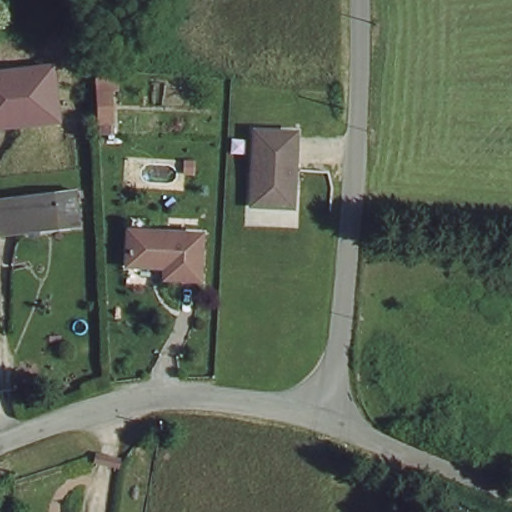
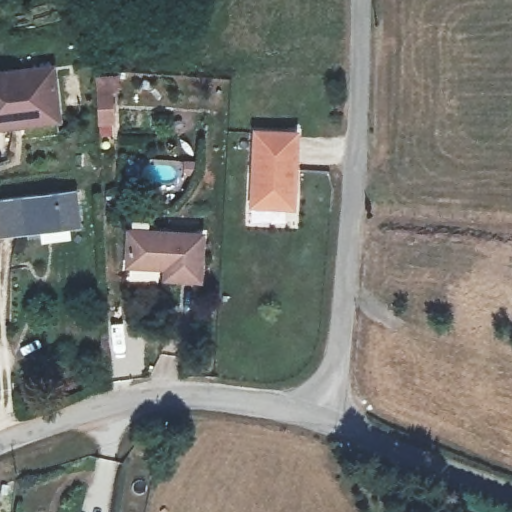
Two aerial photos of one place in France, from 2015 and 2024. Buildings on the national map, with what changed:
unchanged [(61,124),(0,130),(0,68),(54,64),(61,124)]
unchanged [(111,88),(114,124),(98,124),(95,88),(111,88)]
unchanged [(262,209),(261,137),(304,139),(306,209),(262,209)]
unchanged [(4,235),(1,199),(0,198),(1,198),(82,190),(84,228),(57,231),(27,233),(4,235)]
unchanged [(166,280),(165,266),(127,263),(127,231),(197,236),(197,280),(166,280)]

